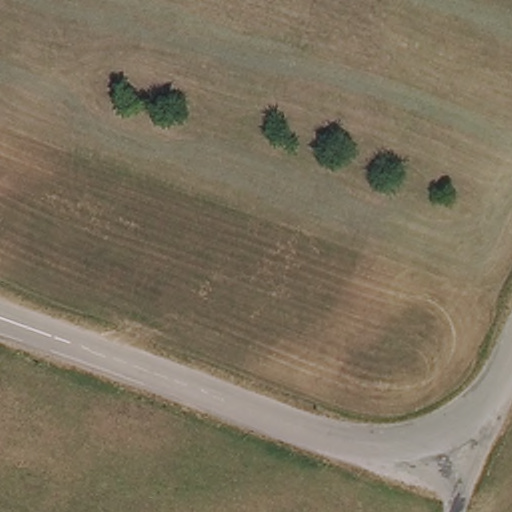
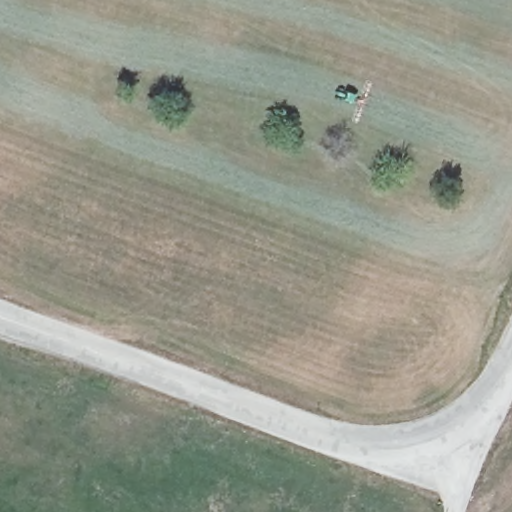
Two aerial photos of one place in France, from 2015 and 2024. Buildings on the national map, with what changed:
[]

